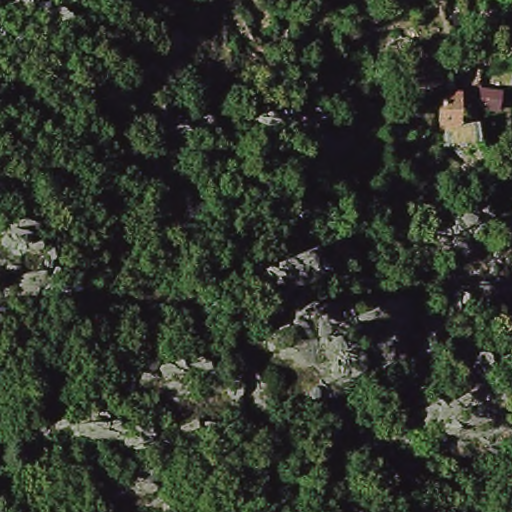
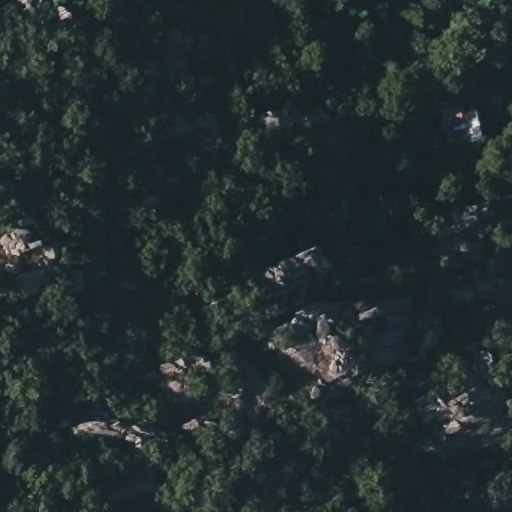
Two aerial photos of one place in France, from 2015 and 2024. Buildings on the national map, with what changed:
unchanged [(439,121),(441,94),(467,96),(464,124),(439,121)]

